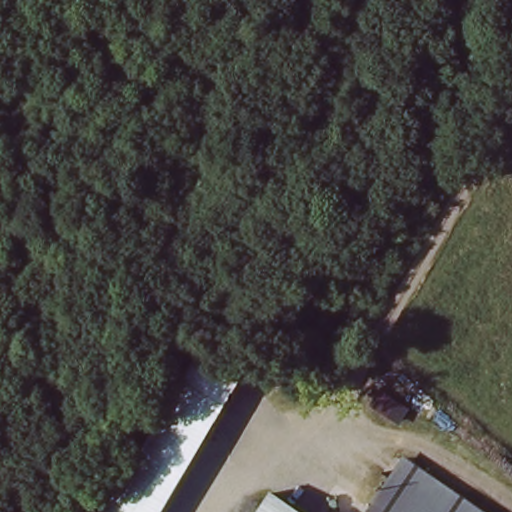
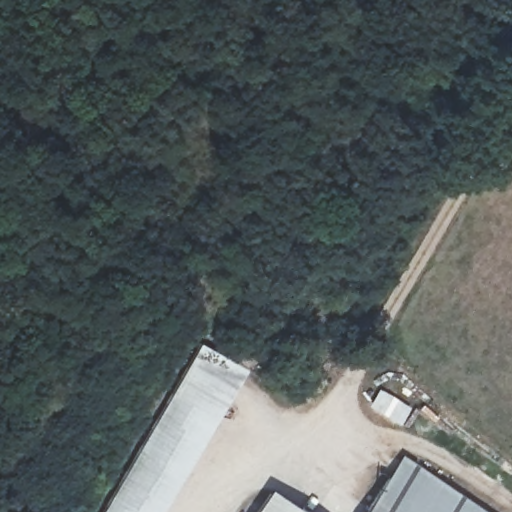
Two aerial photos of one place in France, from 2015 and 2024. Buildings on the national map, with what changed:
unchanged [(236,362),(154,512),(115,512),(206,348),(224,356),(236,362)]
unchanged [(480,512),(366,512),(398,461),(480,512)]
unchanged [(265,500),(284,512),(258,512),(265,500)]

